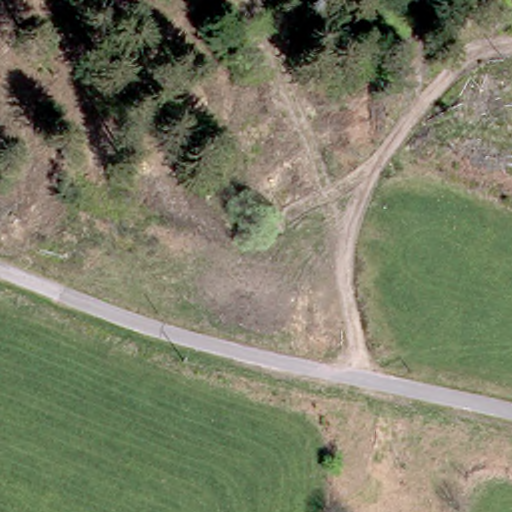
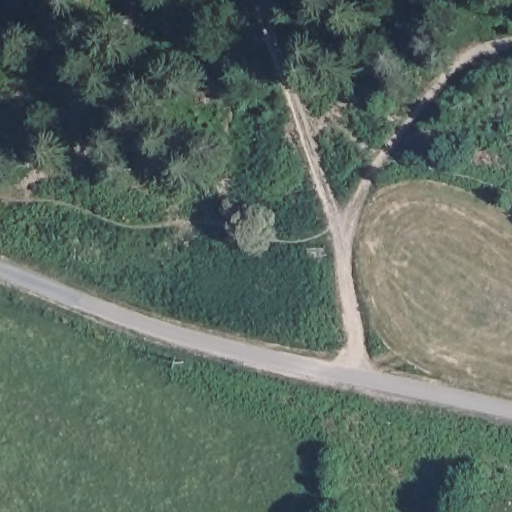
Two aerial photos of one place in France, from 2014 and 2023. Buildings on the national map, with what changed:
[]

